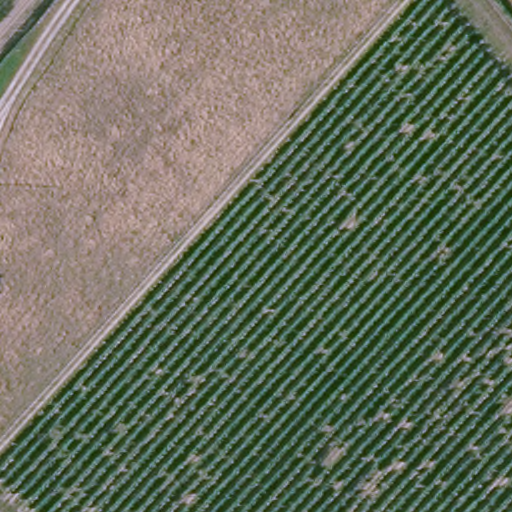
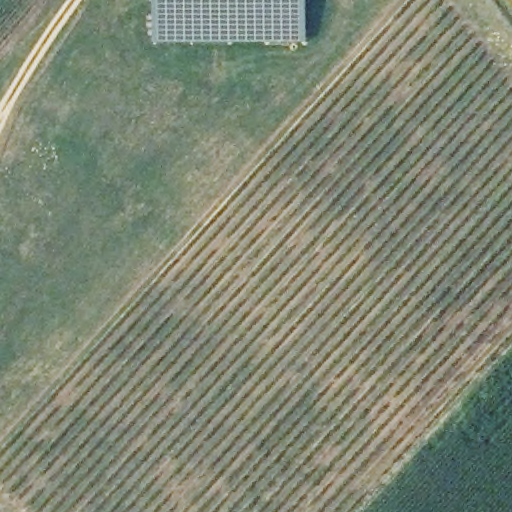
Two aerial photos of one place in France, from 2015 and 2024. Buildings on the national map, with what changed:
new [(153,44),(153,0),(305,0),(305,43),(153,44)]

